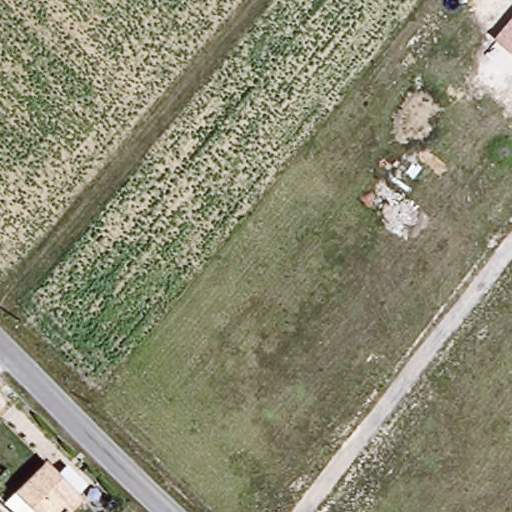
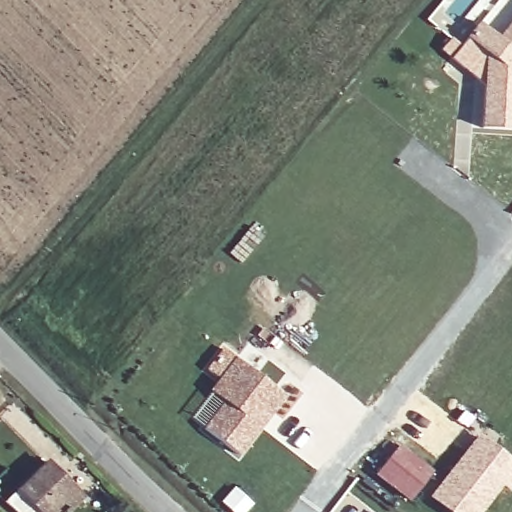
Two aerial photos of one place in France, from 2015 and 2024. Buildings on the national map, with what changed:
unchanged [(498,36),(512,19),(512,48),(498,36)]
new [(480,127),(485,55),(464,37),(479,20),(498,36),(512,48),(512,129),(480,127)]
new [(475,47),(485,55),(482,85),(439,51),(450,38),(457,45),(464,37),(475,47)]
new [(190,418),(233,357),(285,397),(239,456),(190,418)]
new [(512,459),(512,489),(510,492),(501,486),(481,512),(447,512),(426,496),(477,433),(512,459)]
new [(400,441),(433,468),(409,501),(373,474),(400,441)]
unchanged [(58,512),(27,512),(6,492),(37,462),(72,497),(58,512)]

